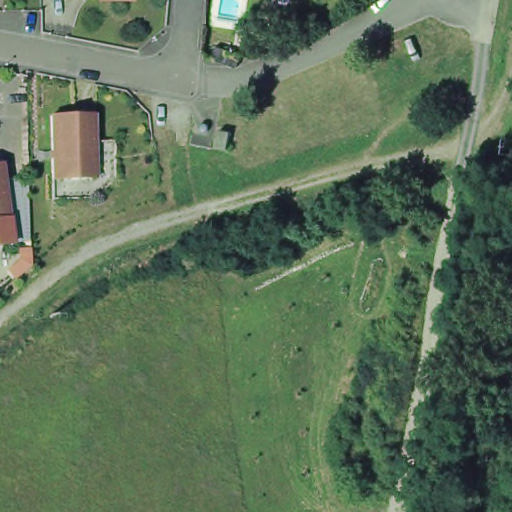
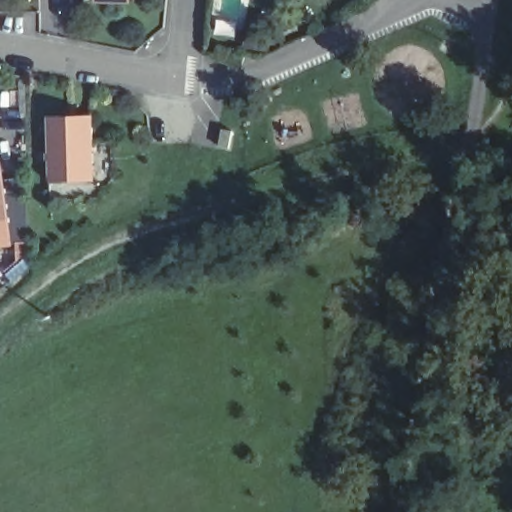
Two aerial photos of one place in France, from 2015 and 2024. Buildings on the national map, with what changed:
unchanged [(267,43),(260,54),(235,43),(240,31),(267,43)]
unchanged [(93,113),(95,176),(52,177),(50,114),(93,113)]

